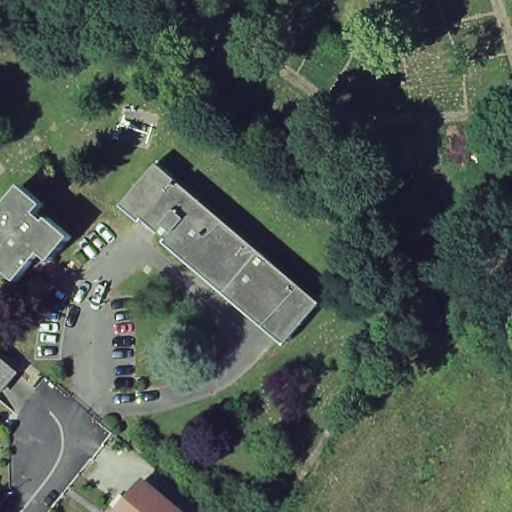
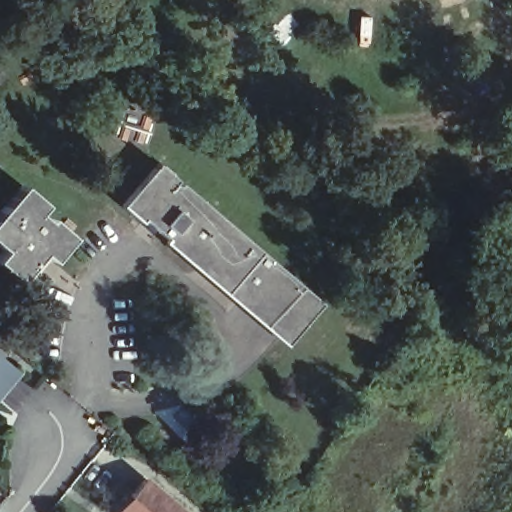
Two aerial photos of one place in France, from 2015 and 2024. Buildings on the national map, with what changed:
unchanged [(156,163),(178,182),(176,184),(261,256),(230,292),(146,219),(141,224),(120,206),(156,163)]
unchanged [(39,259),(26,275),(3,255),(11,245),(0,235),(0,214),(30,179),(52,198),(43,208),(53,217),(56,212),(78,232),(58,257),(53,252),(43,264),(39,259)]
unchanged [(321,307),(289,344),(283,333),(274,329),(230,292),(261,256),(321,307)]
unchanged [(20,370),(6,386),(0,394),(0,353),(20,370)]
unchanged [(138,506),(131,501),(145,484),(178,512),(131,512),(138,506)]

